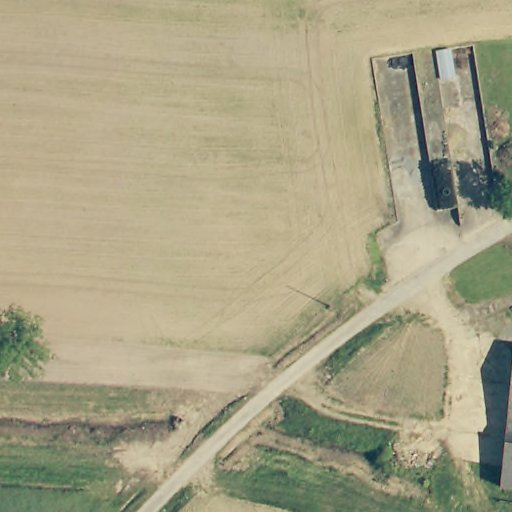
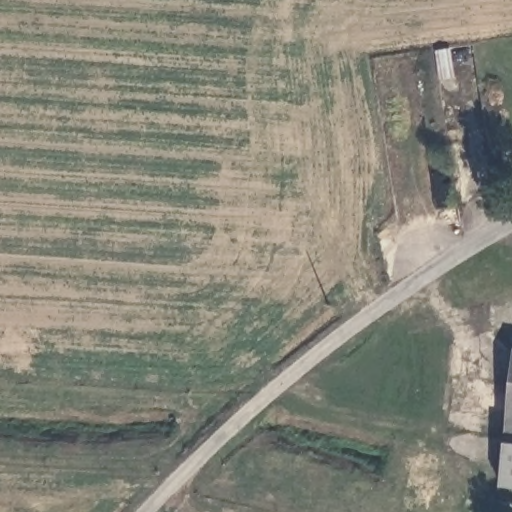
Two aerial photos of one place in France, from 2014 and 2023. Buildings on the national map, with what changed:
unchanged [(507,418),(512,371),(512,418),(510,418),(507,418)]
unchanged [(512,418),(512,445),(507,444),(504,444),(507,418),(510,418),(512,418)]
unchanged [(512,445),(512,489),(498,488),(504,444),(507,444),(512,445)]

